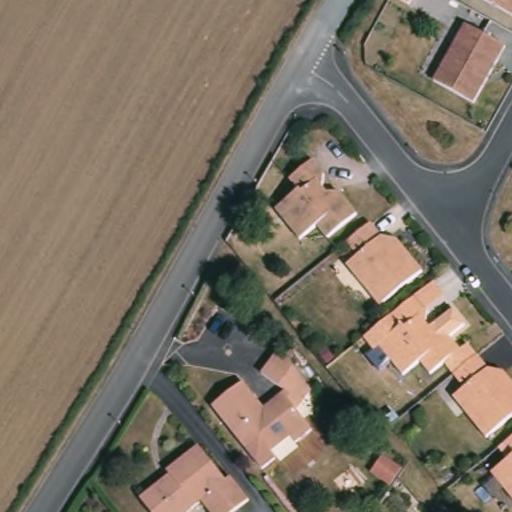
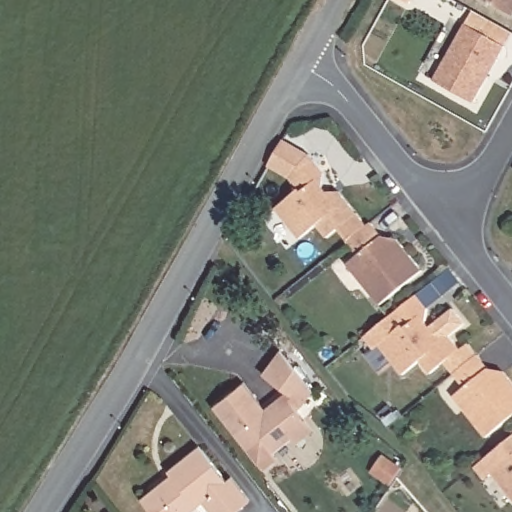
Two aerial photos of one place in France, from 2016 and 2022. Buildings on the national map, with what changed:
unchanged [(407,9),(393,0),(413,0),(407,9)]
unchanged [(472,0),(512,0),(512,19),(510,22),(472,0)]
unchanged [(502,57),(467,112),(429,89),(462,34),(502,57)]
unchanged [(321,242),(311,229),(293,242),(270,212),(293,194),(284,182),(307,164),(317,176),(317,191),(325,202),(333,196),(351,219),(321,242)]
unchanged [(345,270),(357,260),(346,246),(355,239),(369,227),(387,251),(394,245),(420,277),(377,310),(345,270)]
unchanged [(417,366),(400,380),(376,349),(400,331),(389,316),(413,298),(426,315),(423,329),(432,340),(440,334),(457,356),(427,380),(417,366)]
unchanged [(461,390),(450,375),(462,367),(474,357),(492,381),(500,375),(512,391),(512,416),(481,440),(449,398),(461,390)]
unchanged [(276,360),(303,393),(296,404),(254,378),(276,360)]
unchanged [(236,391),(255,415),(268,417),(285,405),(307,431),(291,445),(286,440),(269,453),(275,460),(260,472),(245,453),(211,410),(236,391)]
unchanged [(487,477),(510,458),(501,446),(512,438),(512,506),(511,507),(487,477)]
unchanged [(227,483),(232,478),(250,500),(236,512),(214,512),(205,500),(190,512),(154,512),(142,497),(163,480),(170,488),(177,480),(171,473),(199,448),(227,483)]

